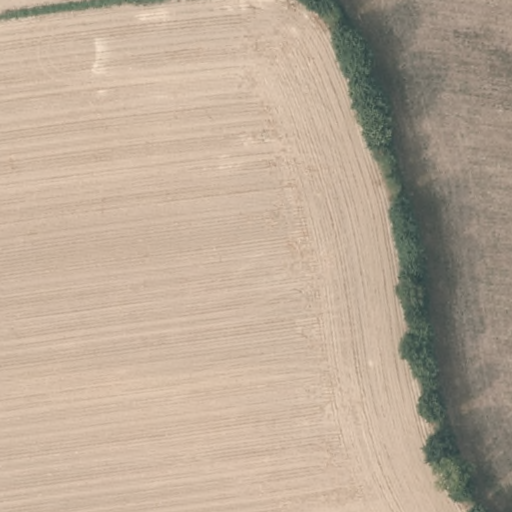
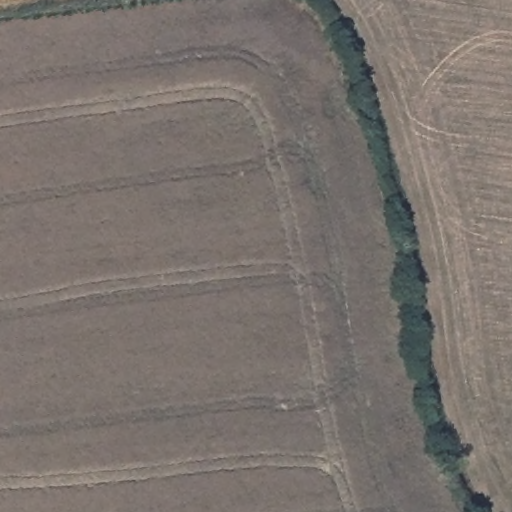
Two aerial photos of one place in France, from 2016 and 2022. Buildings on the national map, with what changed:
[]

